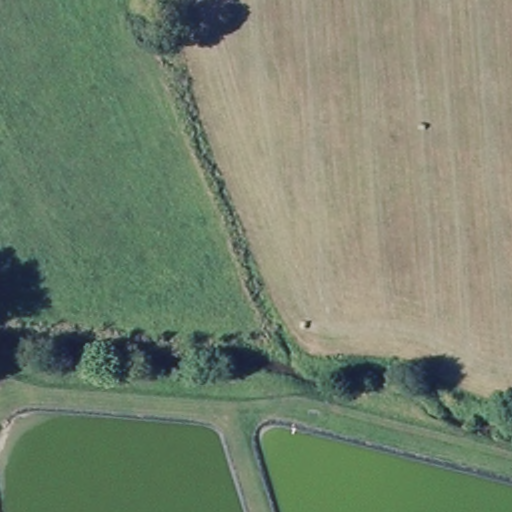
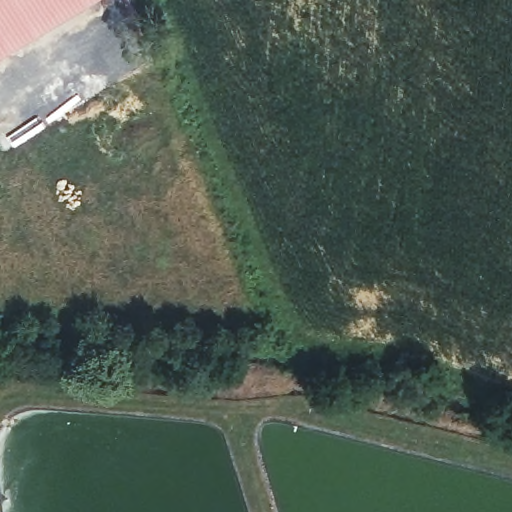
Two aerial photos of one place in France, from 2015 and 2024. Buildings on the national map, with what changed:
new [(15,50),(0,58),(0,0),(94,0),(15,50)]

